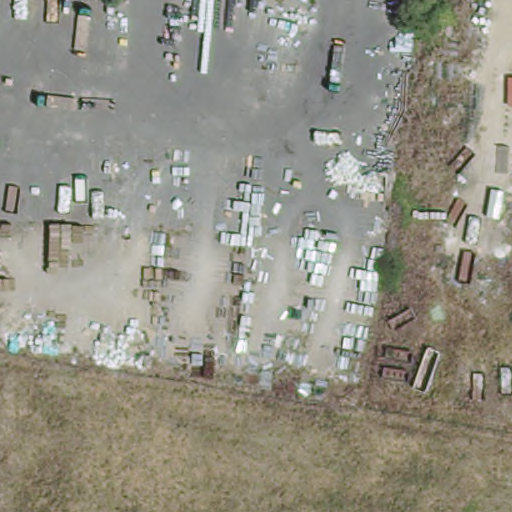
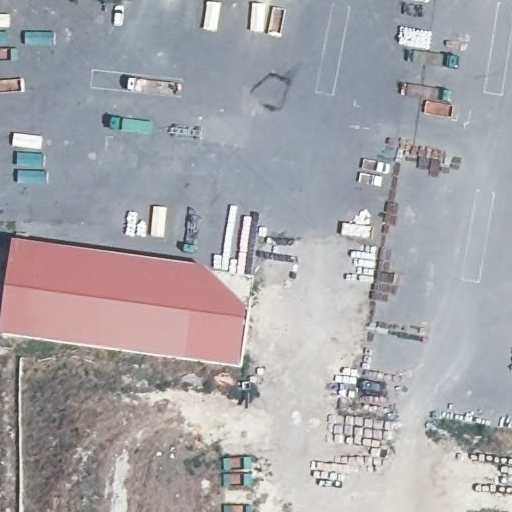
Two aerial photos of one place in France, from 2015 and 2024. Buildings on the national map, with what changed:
new [(15,244),(215,271),(250,307),(242,368),(3,335),(15,244)]

